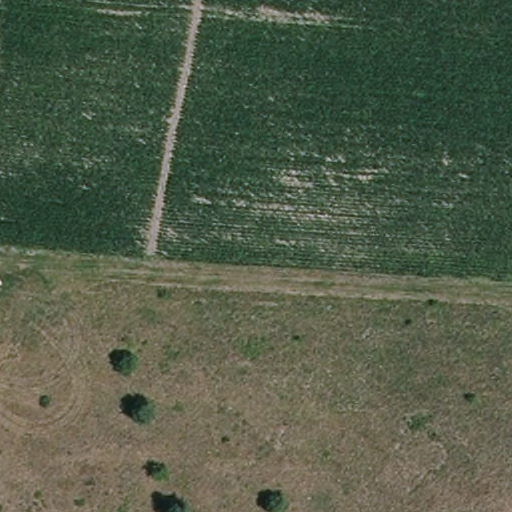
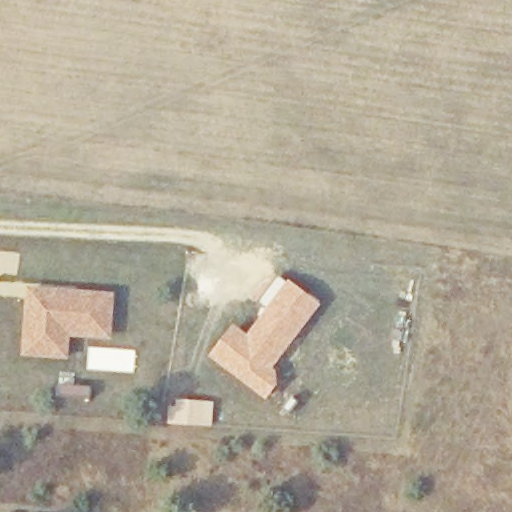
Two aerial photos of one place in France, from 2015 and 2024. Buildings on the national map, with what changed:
new [(232,323),(247,332),(285,277),(323,304),(275,368),(285,376),(267,401),(207,356),(232,323)]
new [(25,352),(30,290),(112,295),(110,321),(78,320),(77,334),(67,334),(66,356),(25,352)]
new [(168,397),(214,400),(212,427),(166,423),(168,397)]

